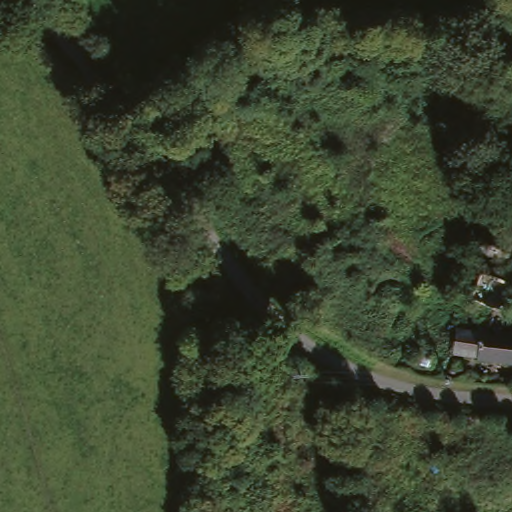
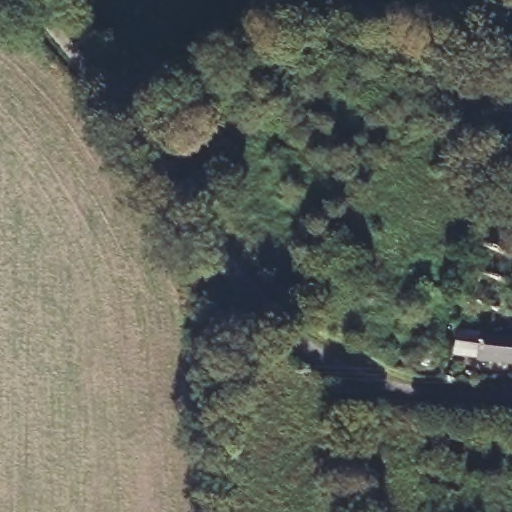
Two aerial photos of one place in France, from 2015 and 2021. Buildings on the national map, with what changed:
unchanged [(508,314),(469,296),(482,265),(512,278),(512,305),(508,314)]
unchanged [(454,358),(454,332),(512,335),(512,361),(454,358)]

